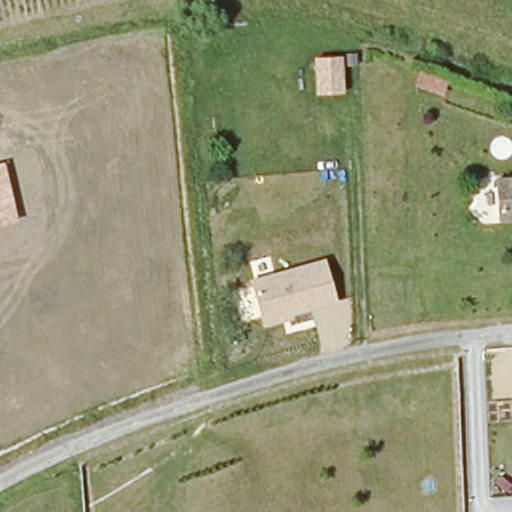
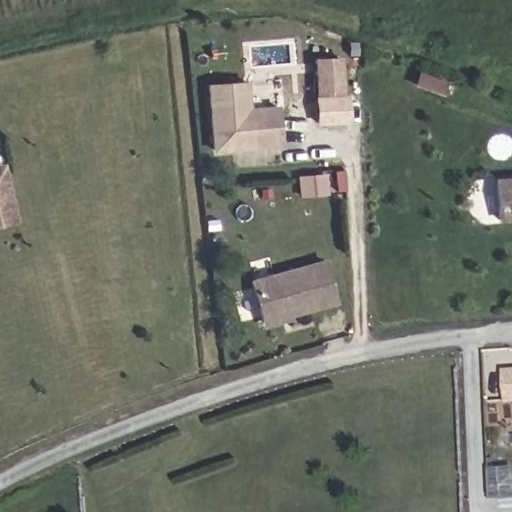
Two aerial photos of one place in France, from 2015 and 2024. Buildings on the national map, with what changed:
unchanged [(345,94),(315,95),(314,57),(344,56),(345,94)]
unchanged [(445,97),(414,86),(420,69),(451,80),(445,97)]
new [(282,146),(213,152),(207,83),(249,80),(251,106),(279,104),(282,146)]
unchanged [(0,224),(0,166),(6,165),(18,219),(0,224)]
unchanged [(503,218),(499,218),(497,177),(504,177),(512,177),(512,218),(503,218)]
unchanged [(340,301),(294,315),(296,322),(265,330),(251,278),(326,257),(340,301)]

